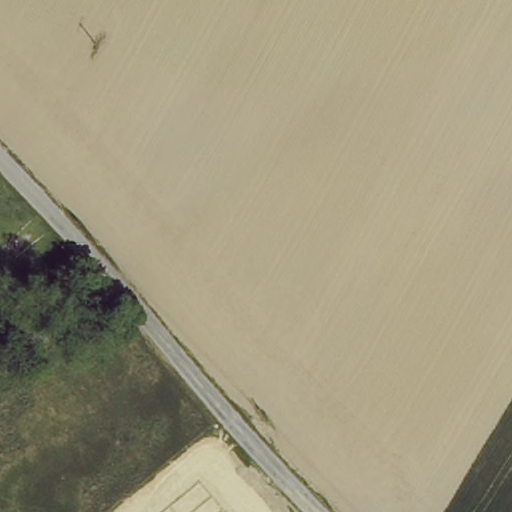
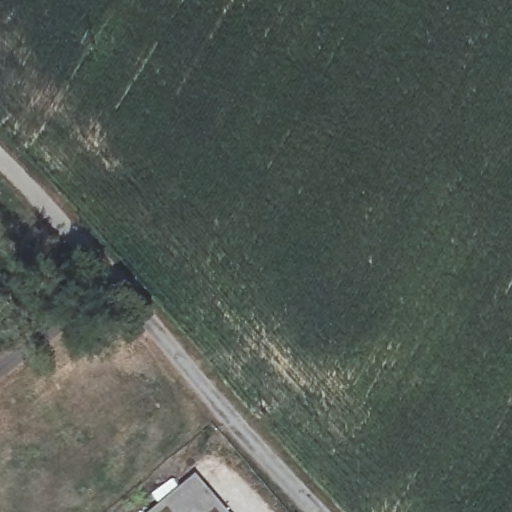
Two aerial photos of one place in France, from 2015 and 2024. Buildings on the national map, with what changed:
new [(195,474),(227,512),(152,512),(195,474)]

